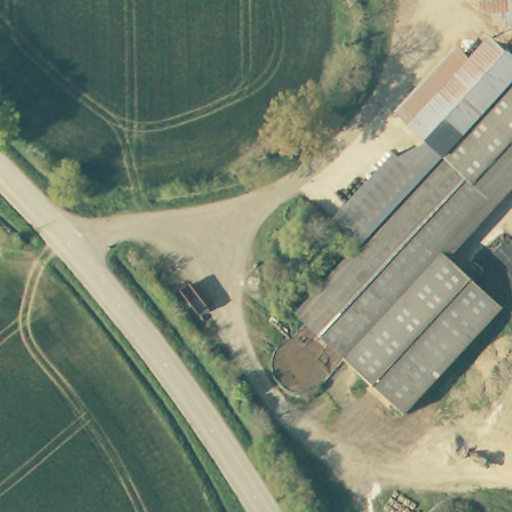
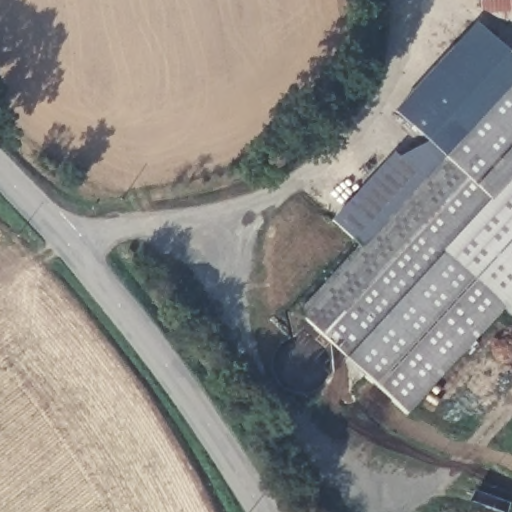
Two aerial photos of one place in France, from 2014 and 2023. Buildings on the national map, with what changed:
unchanged [(512,20),(504,21),(474,6),(474,0),(512,0),(512,20)]
unchanged [(512,87),(447,159),(432,146),(398,117),(479,25),(512,55),(512,87)]
unchanged [(347,364),(300,322),(361,253),(447,159),(512,87),(512,182),(445,255),(347,364)]
unchanged [(361,253),(334,227),(397,157),(403,162),(432,146),(447,159),(361,253)]
new [(512,182),(512,314),(505,309),(445,255),(512,182)]
unchanged [(505,309),(408,418),(347,364),(445,255),(505,309)]

